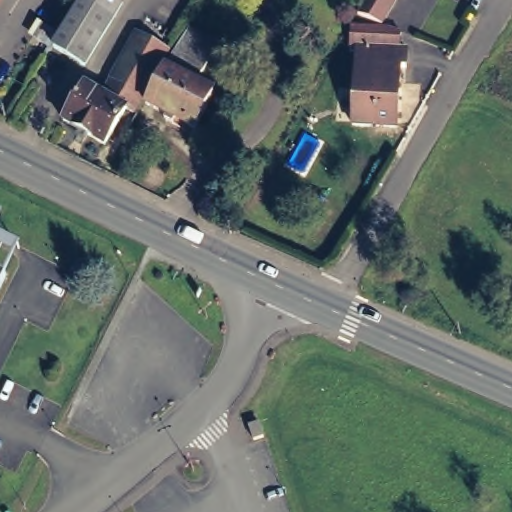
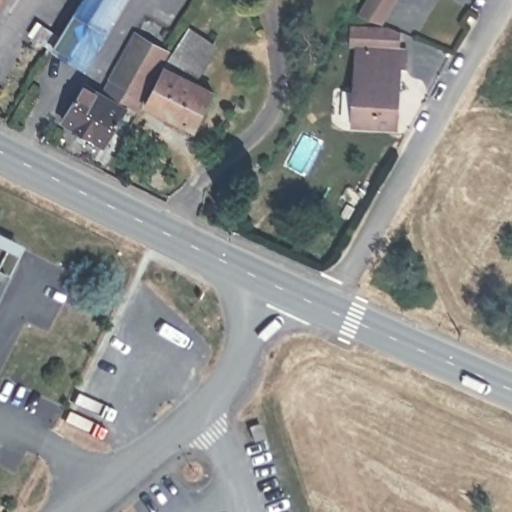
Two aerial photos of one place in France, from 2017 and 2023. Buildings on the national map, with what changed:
unchanged [(0,11),(0,0),(9,0),(2,11),(0,11)]
unchanged [(130,0),(87,71),(55,53),(83,6),(82,5),(85,0),(130,0)]
unchanged [(402,0),(387,24),(363,14),(371,0),(402,0)]
unchanged [(169,59),(190,29),(202,37),(180,73),(215,91),(195,128),(145,103),(166,66),(169,59)]
unchanged [(400,56),(409,56),(409,74),(402,73),(400,132),(357,129),(359,82),(359,55),(354,55),(355,34),(366,34),(389,31),(398,29),(399,37),(400,56)]
unchanged [(126,106),(105,143),(65,120),(85,84),(109,98),(118,83),(112,79),(137,33),(168,50),(132,111),(126,106)]
unchanged [(0,292),(0,231),(25,243),(0,292)]

